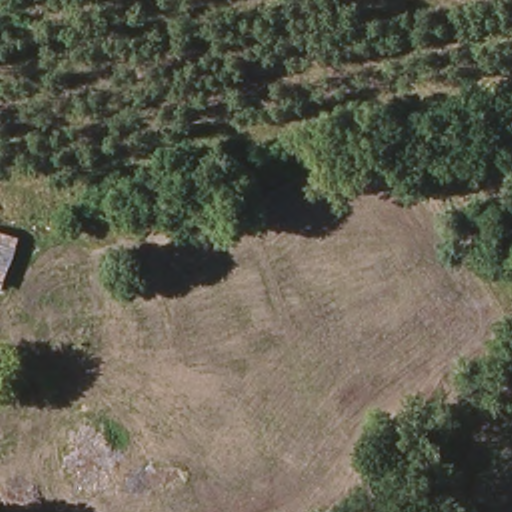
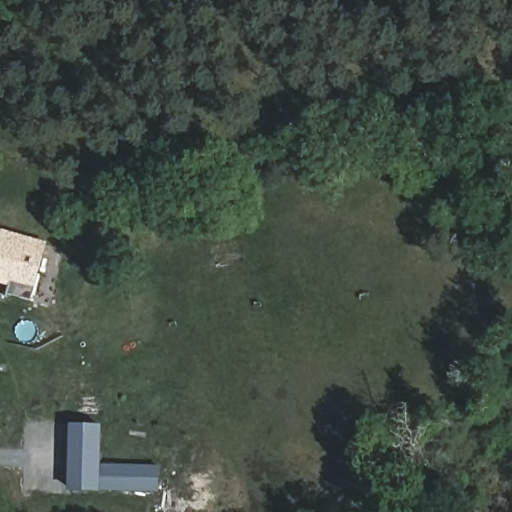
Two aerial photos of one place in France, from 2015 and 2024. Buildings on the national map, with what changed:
demolished [(0,280),(0,231),(16,238),(0,280)]
new [(34,274),(37,275),(29,301),(6,294),(5,296),(3,296),(9,277),(0,275),(0,232),(43,245),(34,274)]
new [(8,282),(0,280),(0,275),(9,277),(8,282)]
demolished [(104,475),(115,475),(114,497),(73,497),(67,428),(104,430),(104,475)]
new [(159,471),(159,495),(73,492),(76,429),(102,430),(101,470),(159,471)]
new [(176,487),(177,476),(211,479),(211,489),(176,487)]

